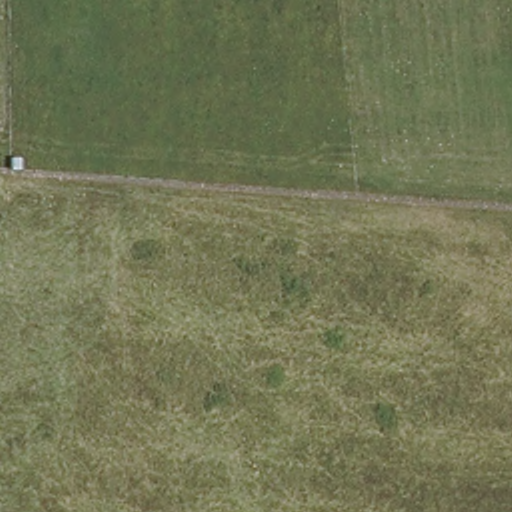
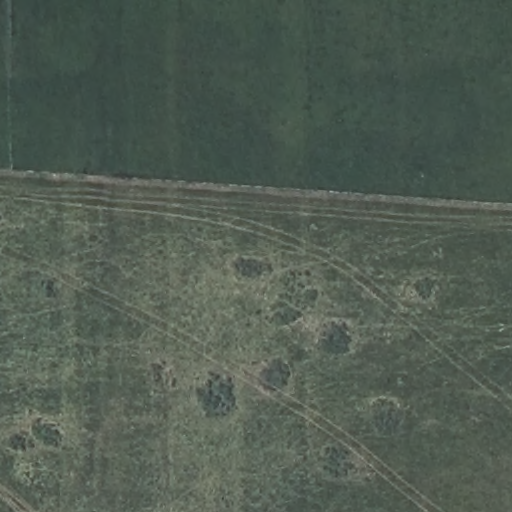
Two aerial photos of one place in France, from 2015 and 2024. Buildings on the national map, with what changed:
[]

